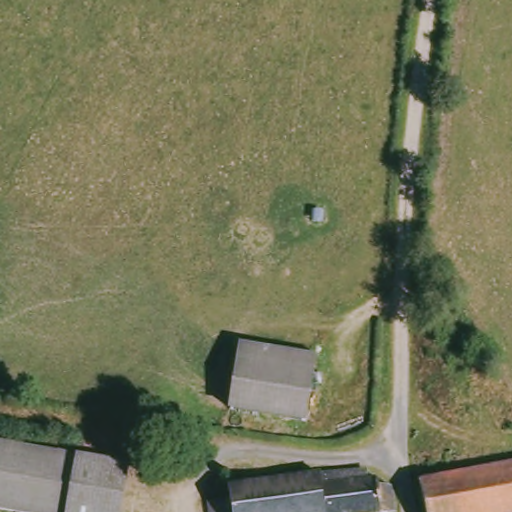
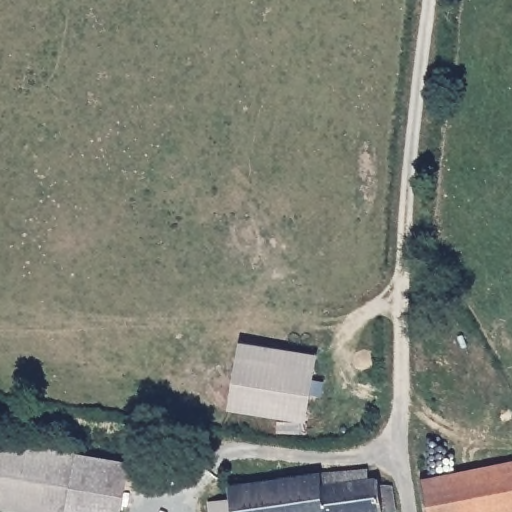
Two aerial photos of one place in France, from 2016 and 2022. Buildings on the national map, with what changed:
unchanged [(316,361),(308,419),(235,409),(243,350),(316,361)]
unchanged [(73,512),(0,499),(0,442),(84,456),(76,512),(73,512)]
unchanged [(131,464),(124,512),(76,512),(84,456),(131,464)]
unchanged [(435,475),(512,463),(512,512),(430,512),(425,477),(435,475)]
unchanged [(326,512),(321,472),(321,468),(337,471),(349,469),(350,482),(375,480),(377,491),(390,489),(391,512),(326,512)]
unchanged [(208,512),(207,500),(231,497),(230,484),(321,472),(326,512),(208,512)]

